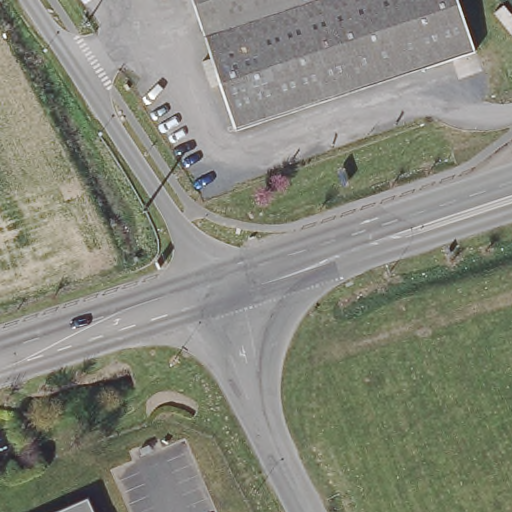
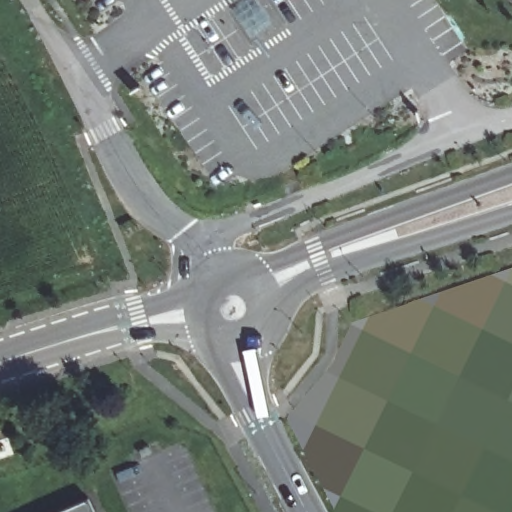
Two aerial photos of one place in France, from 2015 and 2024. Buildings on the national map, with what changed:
demolished [(191,0),(317,0),(270,16),(252,21),(204,38),(191,0)]
demolished [(252,21),(270,16),(317,0),(455,0),(473,52),(235,129),(204,38),(252,21)]
unchanged [(54,512),(88,496),(95,512),(54,512)]

